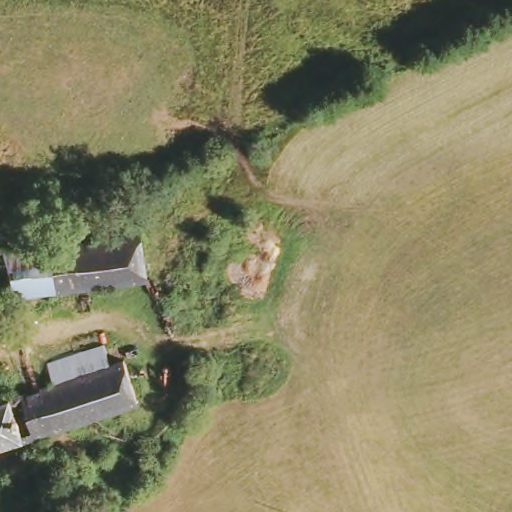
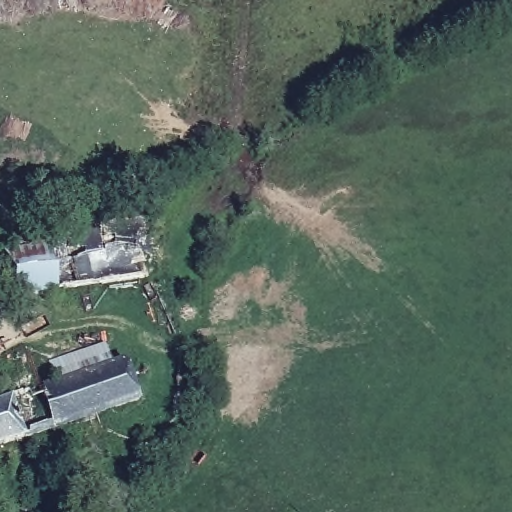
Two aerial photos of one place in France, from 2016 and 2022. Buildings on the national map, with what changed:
unchanged [(142,271),(143,283),(12,300),(5,254),(52,247),(138,235),(142,271)]
unchanged [(61,392),(55,372),(111,353),(117,371),(129,367),(141,408),(0,456),(0,412),(61,392)]

